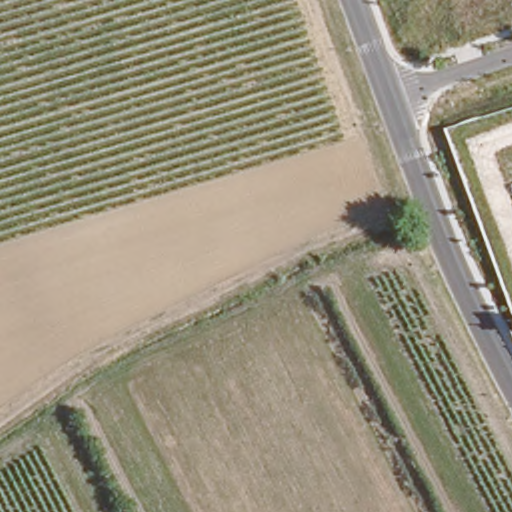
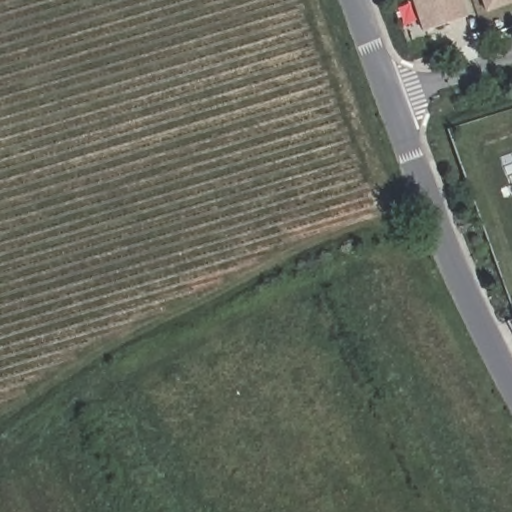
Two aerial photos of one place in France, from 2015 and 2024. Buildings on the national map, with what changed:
new [(421,32),(409,0),(459,0),(465,17),(421,32)]
new [(479,0),(512,0),(512,4),(483,13),(479,0)]

